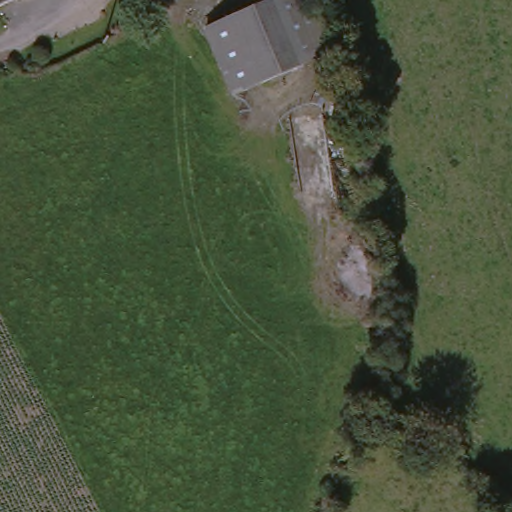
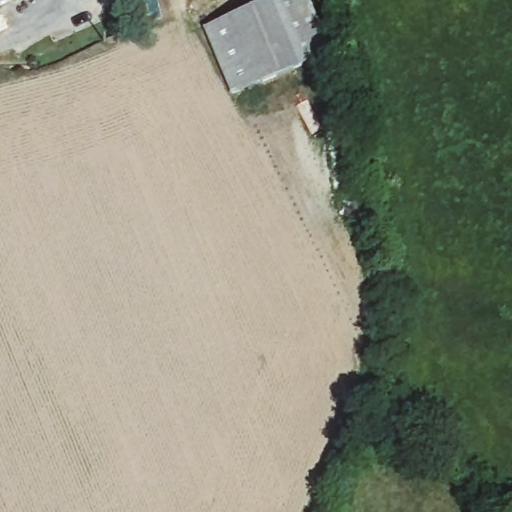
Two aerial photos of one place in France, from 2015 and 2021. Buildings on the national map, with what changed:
unchanged [(0,0),(18,0),(0,8),(0,0)]
unchanged [(301,0),(326,57),(232,102),(204,32),(278,0),(301,0)]

